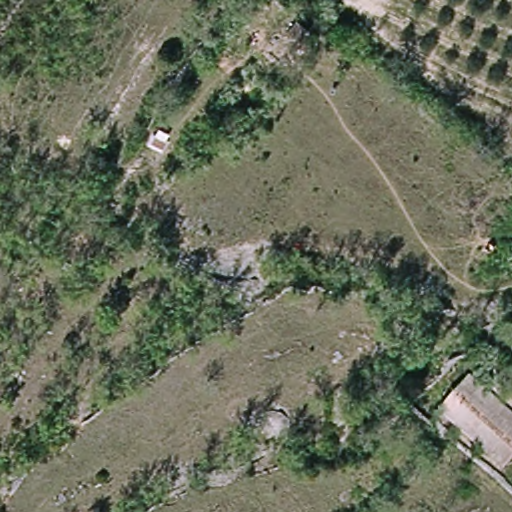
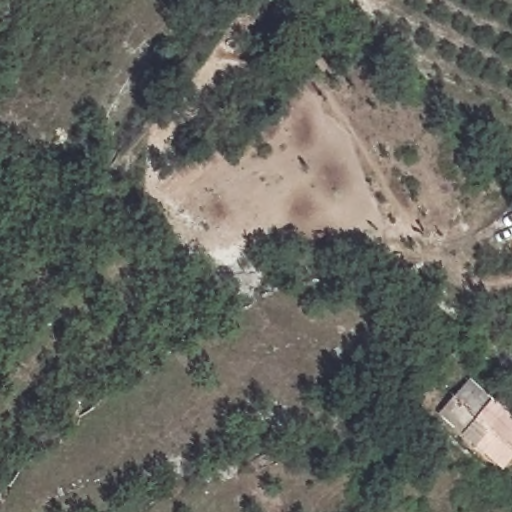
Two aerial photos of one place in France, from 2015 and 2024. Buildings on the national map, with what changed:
unchanged [(441,416),(470,384),(512,423),(512,455),(500,468),(441,416)]

